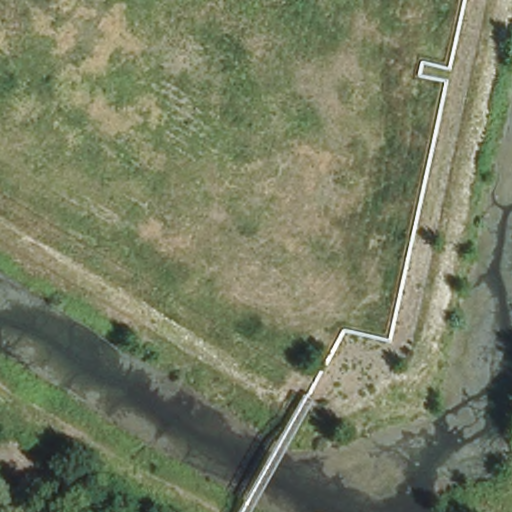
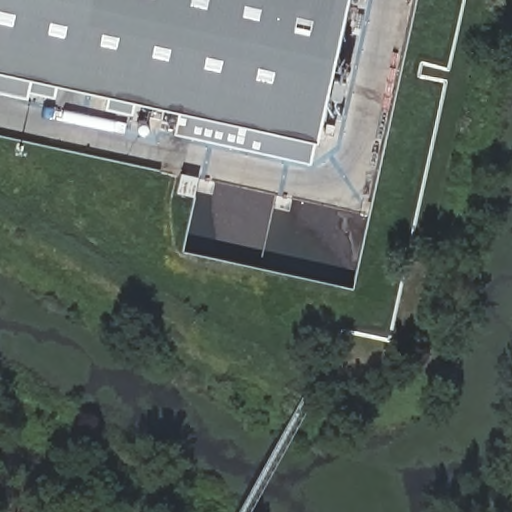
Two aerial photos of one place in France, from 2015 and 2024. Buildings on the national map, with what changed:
new [(132,115),(104,109),(107,94),(58,82),(55,98),(28,92),(27,97),(0,91),(0,0),(347,0),(316,139),(311,164),(173,134),(178,109),(136,100),(132,115)]

